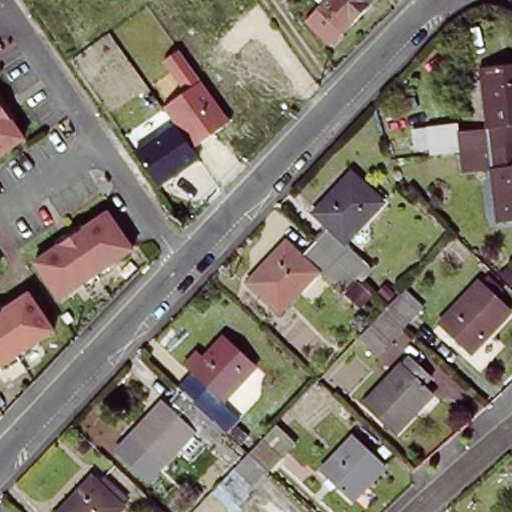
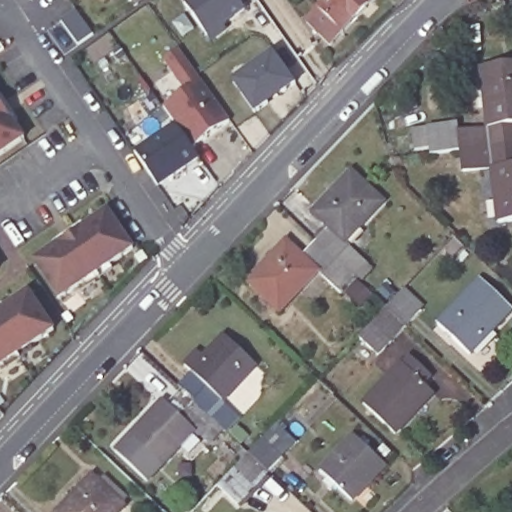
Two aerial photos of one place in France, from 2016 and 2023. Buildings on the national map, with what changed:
new [(240,5),(245,11),(222,27),(227,31),(212,42),(183,3),(188,0),(247,0),(240,5)]
unchanged [(331,0),(379,0),(335,44),(311,21),(331,0)]
unchanged [(163,108),(187,92),(162,61),(179,49),(230,123),(191,146),(177,125),(163,108)]
new [(254,114),(231,83),(272,53),(295,85),(254,114)]
unchanged [(453,125),(455,132),(485,128),(480,68),(512,63),(512,144),(458,151),(428,155),(425,129),(453,125)]
unchanged [(18,122),(13,125),(25,142),(0,159),(0,96),(8,108),(18,122)]
unchanged [(200,161),(158,187),(135,152),(177,125),(200,161)]
unchanged [(495,222),(490,168),(460,171),(458,151),(512,144),(512,220),(495,222)]
unchanged [(317,210),(354,170),(383,199),(347,239),(352,243),(375,264),(360,279),(317,239),(331,223),(317,210)]
unchanged [(58,301),(32,265),(55,249),(52,244),(65,235),(79,226),(82,231),(105,215),(130,252),(107,267),(110,272),(97,281),(83,290),(80,286),(58,301)]
unchanged [(304,252),(317,239),(360,279),(347,293),(320,267),(280,308),(251,280),(290,239),(304,252)]
unchanged [(482,277),(512,307),(512,309),(472,351),(440,321),(482,277)]
unchanged [(367,327),(392,300),(407,284),(427,303),(412,318),(386,345),(367,327)]
unchanged [(4,305),(26,290),(52,328),(29,343),(32,347),(17,357),(2,367),(0,363),(0,302),(1,301),(4,305)]
unchanged [(214,421),(194,402),(210,386),(195,371),(228,336),(258,365),(225,400),(247,421),(232,438),(214,421)]
unchanged [(410,354),(440,384),(403,423),(372,394),(410,354)]
unchanged [(173,406),(178,401),(187,410),(194,402),(214,421),(202,434),(197,430),(163,466),(132,437),(167,400),(173,406)]
unchanged [(250,455),(280,423),(297,440),(283,456),(285,457),(270,473),(250,455)]
unchanged [(357,435),(389,466),(355,502),(323,472),(357,435)]
unchanged [(240,505),(220,487),(250,455),(270,473),(240,505)]
unchanged [(56,512),(92,468),(130,496),(119,512),(56,512)]

